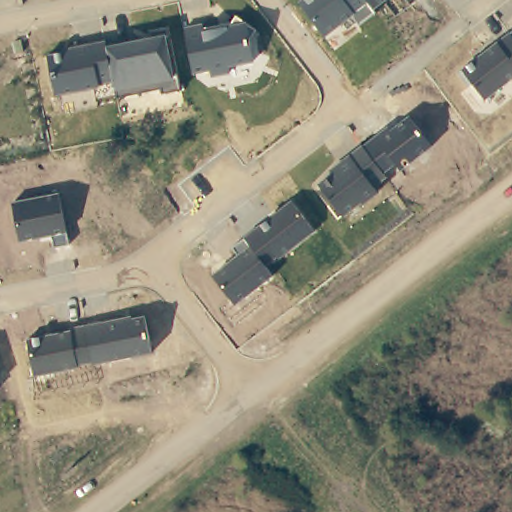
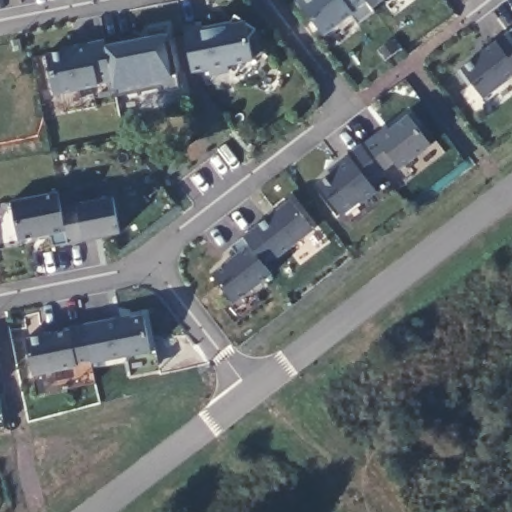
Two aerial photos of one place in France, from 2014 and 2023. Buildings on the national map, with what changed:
unchanged [(375,12),(361,24),(349,16),(324,35),(298,4),(304,0),(383,0),(372,9),(375,12)]
unchanged [(249,40),(254,61),(229,67),(230,74),(212,78),(209,71),(191,74),(182,28),(202,24),(203,29),(231,24),(234,15),(256,28),(249,40)]
unchanged [(162,95),(159,88),(113,98),(111,83),(97,85),(97,88),(53,96),(45,55),(63,50),(63,49),(104,40),(105,46),(149,37),(149,33),(167,29),(179,90),(162,95)]
unchanged [(459,74),(512,31),(512,80),(483,101),(459,74)]
unchanged [(399,173),(394,168),(384,177),(387,179),(376,190),(380,194),(363,207),(360,205),(341,218),(315,185),(360,146),(361,148),(384,127),(389,132),(406,119),(429,146),(399,173)]
unchanged [(52,248),(51,235),(18,240),(11,203),(57,194),(67,244),(52,248)]
new [(81,242),(67,244),(60,209),(113,196),(121,234),(81,242)]
unchanged [(266,269),(271,275),(234,305),(211,278),(237,254),(231,248),(289,203),(313,231),(266,269)]
unchanged [(77,367),(77,369),(32,376),(27,339),(70,331),(70,329),(144,318),(150,354),(77,367)]

